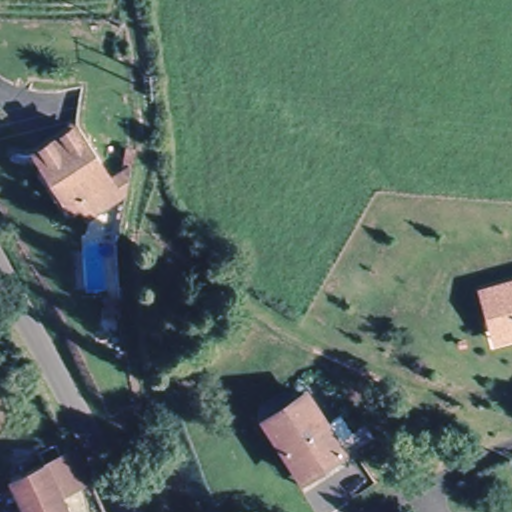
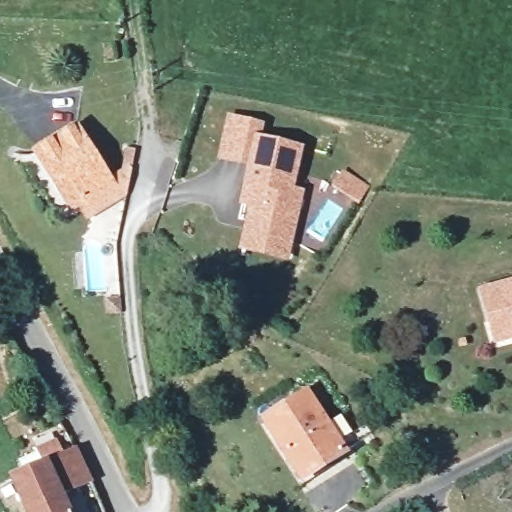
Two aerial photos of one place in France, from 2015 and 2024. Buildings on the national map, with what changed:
new [(265,123),(262,135),(304,145),(297,187),(305,189),(289,260),(240,250),(251,207),(238,203),(247,166),(218,161),(229,115),(265,123)]
unchanged [(133,183),(86,211),(78,197),(70,202),(35,149),(73,126),(105,177),(139,157),(133,183)]
unchanged [(488,326),(482,304),(479,295),(512,285),(512,339),(509,340),(494,345),(488,326)]
unchanged [(351,449),(335,457),(315,467),(294,478),(264,417),(305,396),(321,428),(337,420),(351,449)]
unchanged [(91,482),(64,495),(50,462),(77,449),(91,482)]
unchanged [(48,463),(68,512),(27,512),(13,480),(48,463)]

